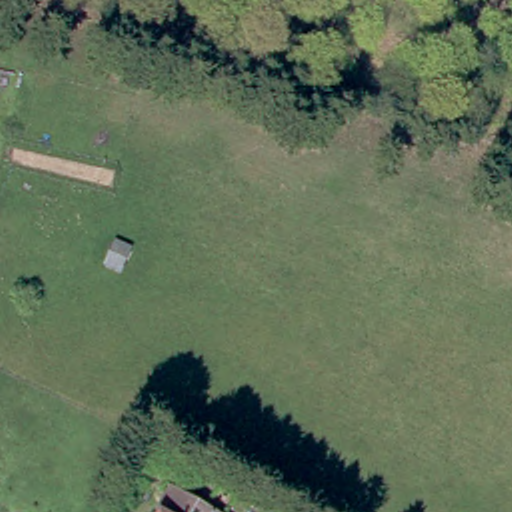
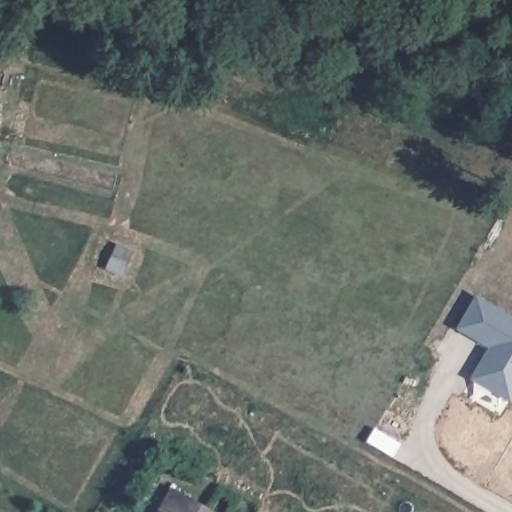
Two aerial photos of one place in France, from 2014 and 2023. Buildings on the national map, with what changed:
new [(512,319),(512,398),(509,402),(472,379),(491,348),(459,329),(477,299),(512,319)]
unchanged [(152,511),(165,489),(209,512),(154,512),(152,511)]

